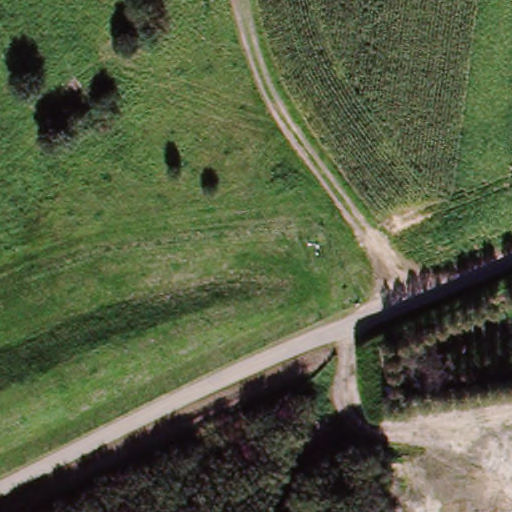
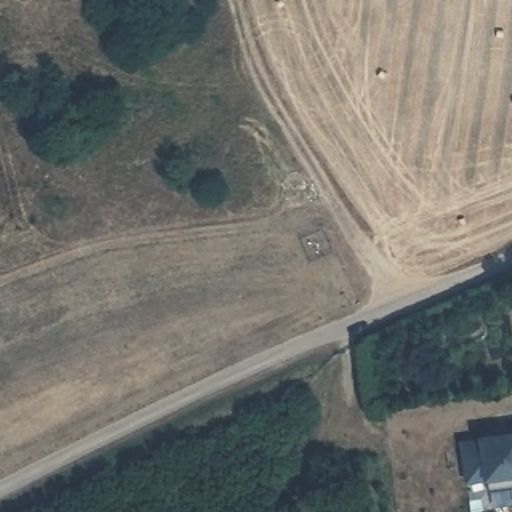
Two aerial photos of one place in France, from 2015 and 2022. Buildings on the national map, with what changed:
unchanged [(392,365),(379,367),(375,340),(387,335),(392,365)]
new [(477,444),(477,442),(512,437),(512,491),(485,495),(483,482),(463,485),(457,447),(477,444)]

